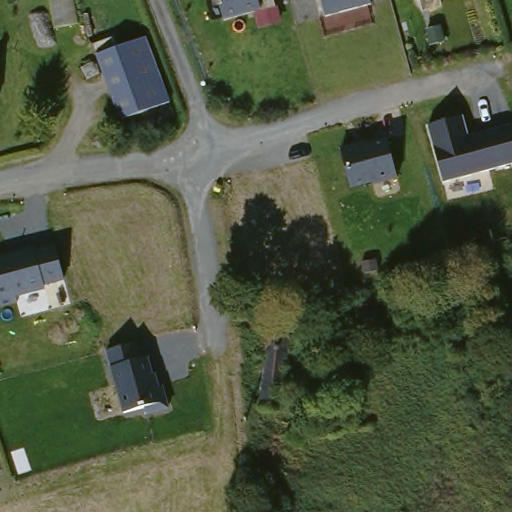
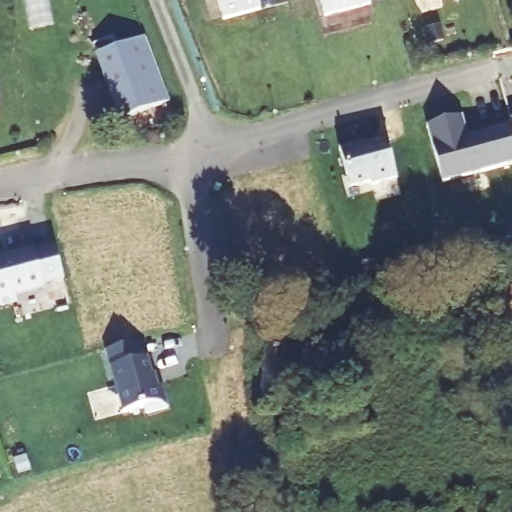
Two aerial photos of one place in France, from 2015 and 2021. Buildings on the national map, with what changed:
unchanged [(223,0),(267,0),(263,1),(264,9),(227,18),(223,0)]
unchanged [(372,6),(324,18),(319,0),(370,0),(372,6)]
unchanged [(161,104),(112,122),(88,56),(137,38),(161,104)]
unchanged [(512,126),(512,164),(443,185),(426,125),(462,115),(468,136),(512,126)]
unchanged [(399,178),(351,191),(339,150),(386,137),(399,178)]
unchanged [(66,282),(45,288),(46,290),(17,299),(18,304),(0,309),(0,257),(35,247),(37,250),(55,244),(66,282)]
unchanged [(253,425),(263,340),(265,340),(266,330),(288,333),(277,427),(253,425)]
unchanged [(135,343),(139,359),(151,356),(154,373),(158,372),(162,387),(164,386),(170,408),(146,414),(144,408),(122,414),(105,352),(135,343)]

